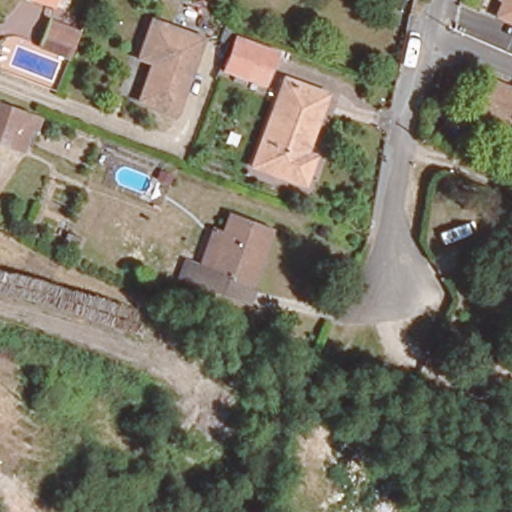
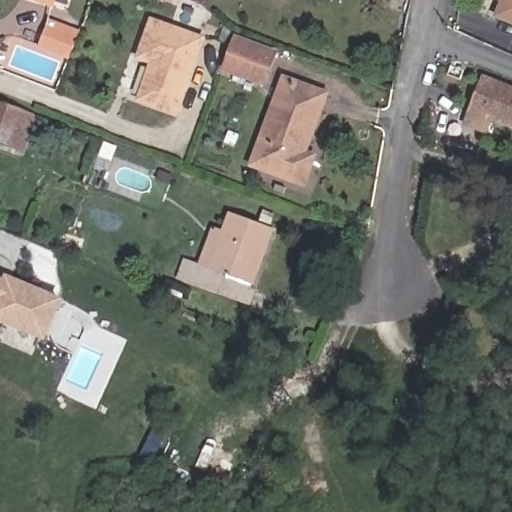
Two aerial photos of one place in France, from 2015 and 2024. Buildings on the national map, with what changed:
unchanged [(29,0),(54,0),(52,8),(29,0)]
unchanged [(163,0),(162,3),(155,0),(163,0)]
unchanged [(504,3),(499,0),(512,0),(512,22),(498,16),(504,3)]
unchanged [(231,36),(236,22),(242,28),(238,39),(231,36)]
unchanged [(38,46),(46,23),(78,36),(69,58),(38,46)]
unchanged [(148,23),(198,39),(172,114),(135,100),(147,63),(135,59),(148,23)]
unchanged [(271,74),(239,63),(248,39),(280,50),(271,74)]
unchanged [(304,154),(314,158),(303,185),(251,166),(285,80),(325,95),(304,154)]
unchanged [(455,129),(475,84),(512,99),(512,139),(482,126),(476,139),(473,146),(452,136),(455,129)]
unchanged [(0,146),(0,104),(22,112),(37,117),(33,128),(18,123),(8,149),(0,146)]
unchanged [(208,230),(224,235),(230,217),(274,231),(257,284),(196,263),(208,230)]
unchanged [(73,222),(85,226),(77,250),(64,245),(73,222)]
unchanged [(247,309),(179,284),(185,260),(196,263),(257,284),(247,309)]
new [(44,339),(0,320),(0,272),(62,299),(44,339)]

